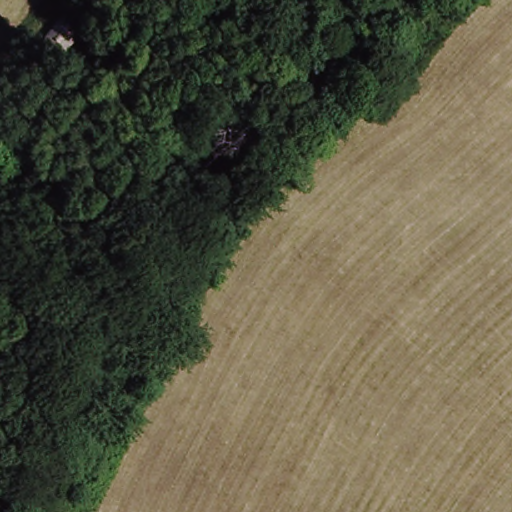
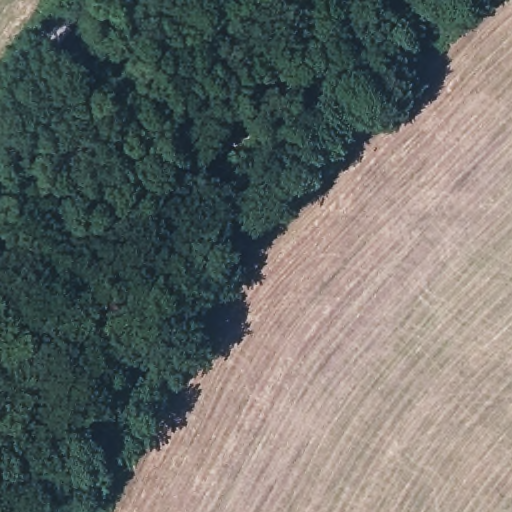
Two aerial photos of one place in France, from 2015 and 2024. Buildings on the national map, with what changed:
[]

